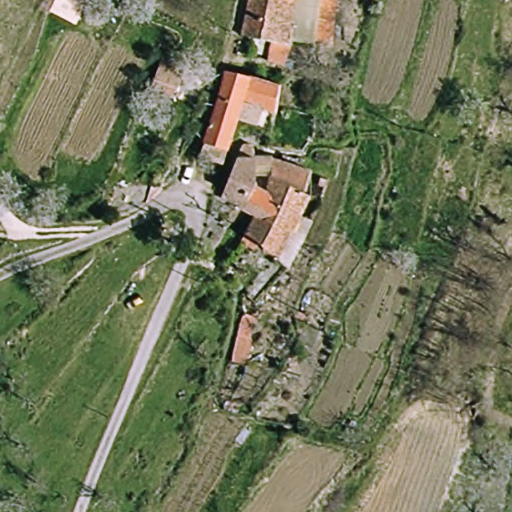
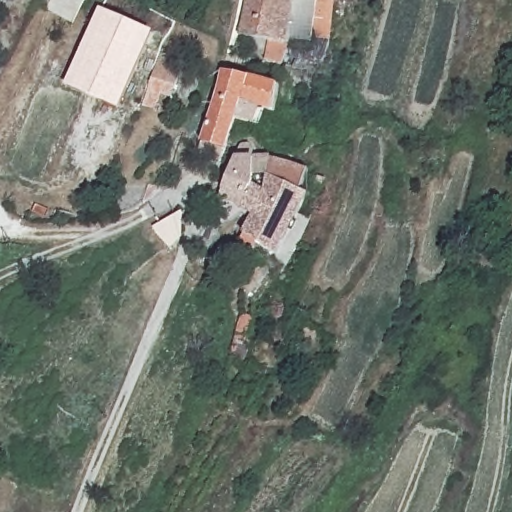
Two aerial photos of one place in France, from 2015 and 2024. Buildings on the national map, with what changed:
unchanged [(38,0),(87,0),(75,25),(64,19),(35,6),(38,0)]
unchanged [(316,32),(316,43),(288,39),(286,55),(266,53),(268,36),(239,32),(248,0),(330,0),(326,33),(316,32)]
new [(120,109),(65,84),(100,7),(155,32),(120,109)]
unchanged [(153,85),(168,59),(189,66),(178,95),(153,85)]
unchanged [(234,118),(229,151),(206,144),(218,107),(225,68),(279,80),(273,107),(265,106),(263,122),(234,118)]
unchanged [(261,217),(233,196),(234,167),(271,171),(274,149),(312,160),(301,182),(306,184),(298,202),(284,230),(276,247),(273,252),(247,238),(261,217)]

